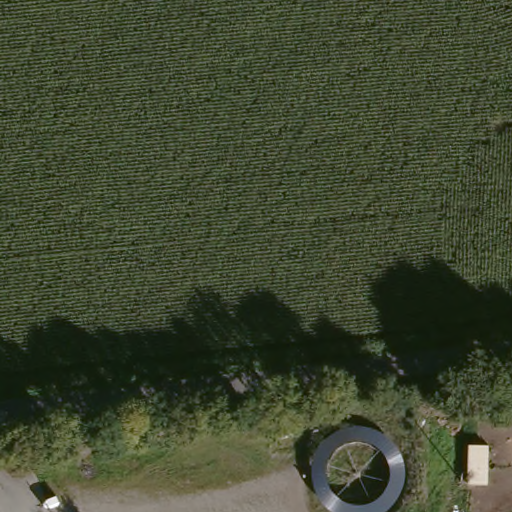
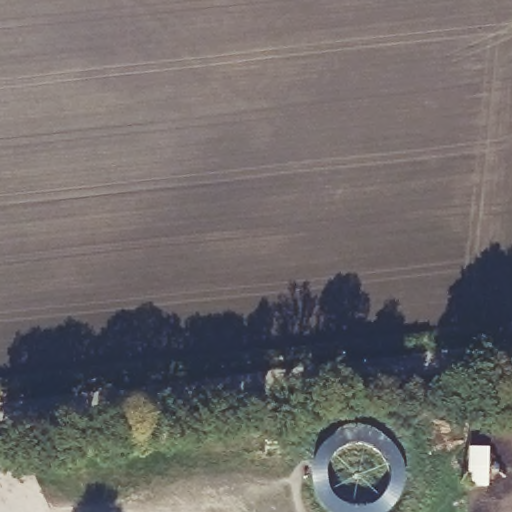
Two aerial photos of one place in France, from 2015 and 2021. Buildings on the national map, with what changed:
unchanged [(481,325),(477,296),(512,293),(512,322),(481,325)]

